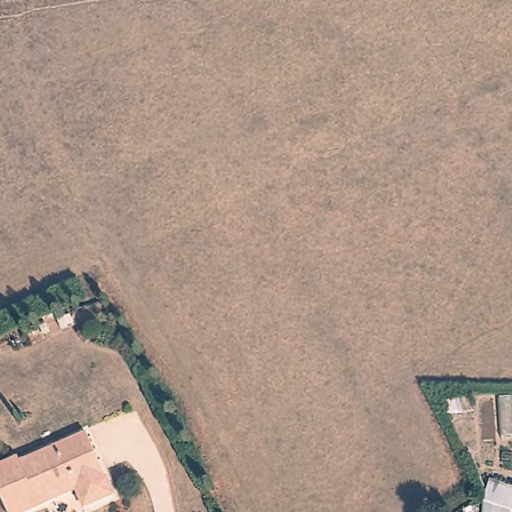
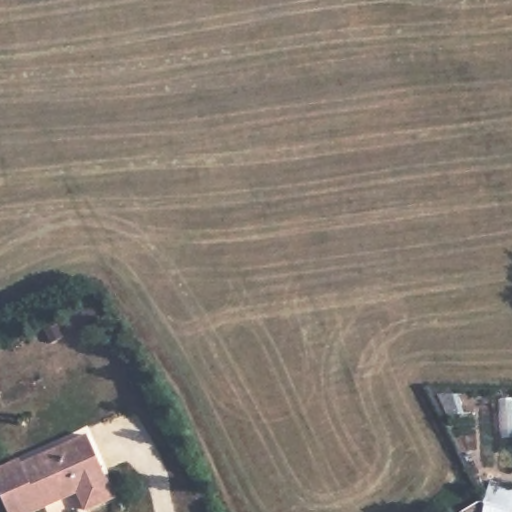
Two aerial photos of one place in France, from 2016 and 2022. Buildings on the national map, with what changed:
unchanged [(42,512),(6,512),(0,500),(0,473),(19,464),(21,469),(57,452),(87,439),(114,501),(91,512),(84,512),(77,496),(42,512)]
unchanged [(512,489),(512,511),(484,502),(490,482),(512,489)]
unchanged [(512,511),(512,512),(483,512),(484,502),(512,511)]

